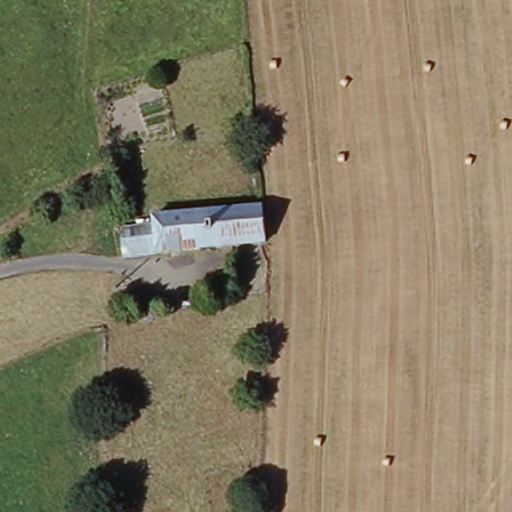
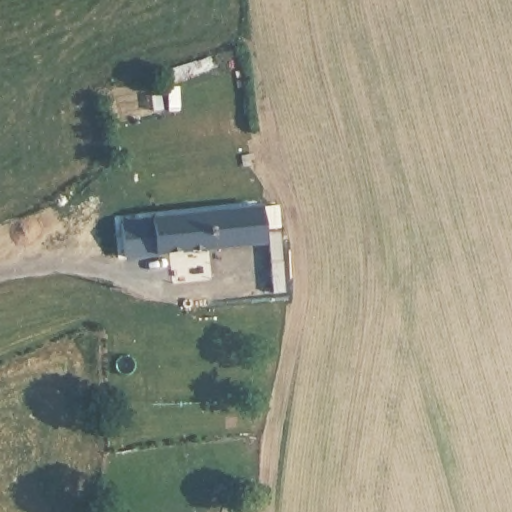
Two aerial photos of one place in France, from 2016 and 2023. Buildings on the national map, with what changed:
unchanged [(155,227),(153,219),(260,204),(264,239),(126,259),(121,230),(155,227)]

